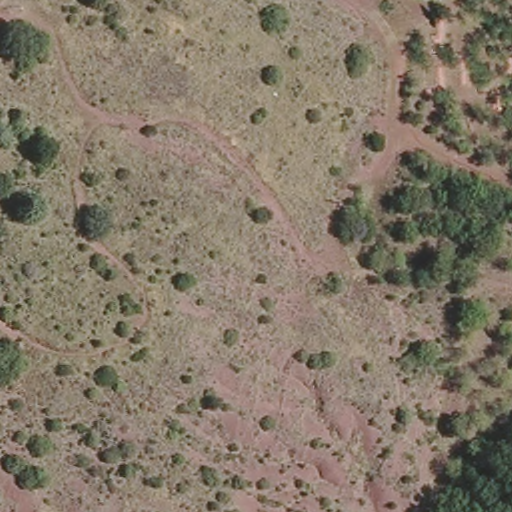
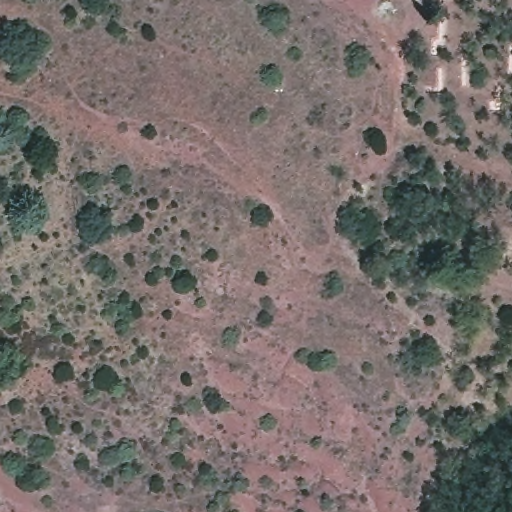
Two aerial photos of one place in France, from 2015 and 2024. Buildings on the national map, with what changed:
[]

